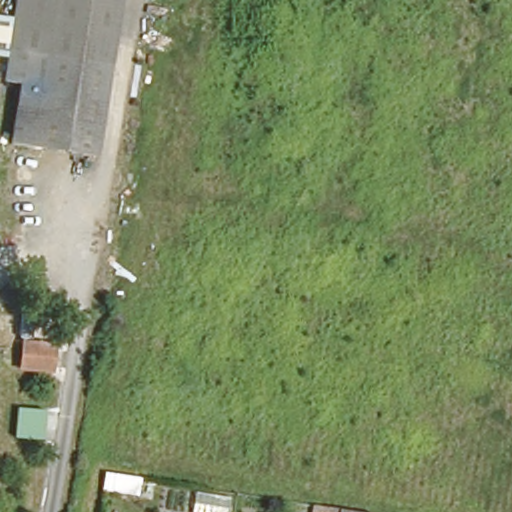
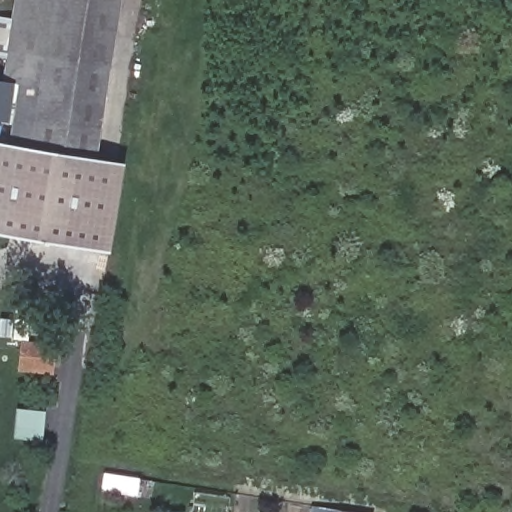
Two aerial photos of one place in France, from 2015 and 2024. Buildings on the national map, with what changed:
unchanged [(96,60),(82,149),(0,136),(0,96),(16,0),(105,0),(96,60)]
new [(0,233),(0,142),(123,162),(107,252),(0,233)]
unchanged [(46,371),(17,367),(19,341),(49,346),(46,371)]
new [(20,408),(47,412),(42,441),(15,437),(20,408)]
unchanged [(137,500),(102,493),(106,471),(142,477),(137,500)]
unchanged [(350,512),(310,512),(311,506),(337,511),(350,512)]

